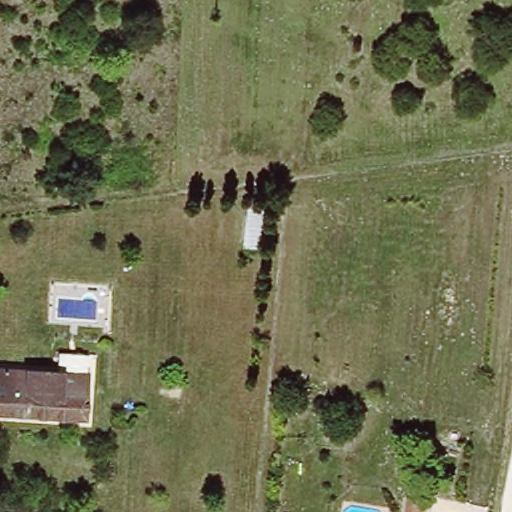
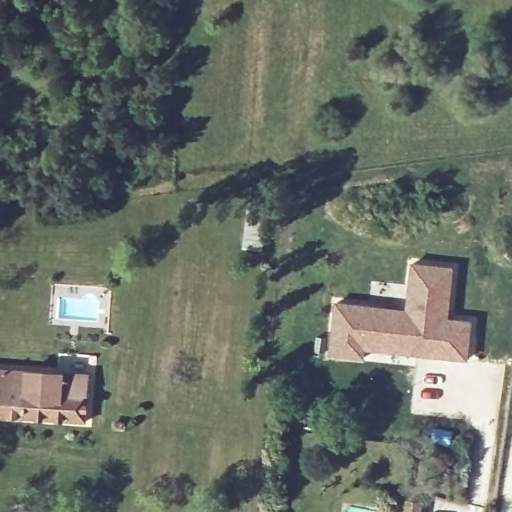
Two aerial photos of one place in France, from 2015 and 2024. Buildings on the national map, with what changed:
unchanged [(245,205),(268,206),(264,247),(241,245),(245,205)]
new [(338,304),(372,305),(371,310),(409,313),(412,266),(453,268),(449,320),(473,321),(471,359),(445,357),(446,350),(421,348),(421,353),(368,350),(368,361),(334,360),(338,304)]
unchanged [(81,423),(0,417),(0,371),(86,377),(81,423)]
unchanged [(427,496),(424,512),(408,512),(412,495),(427,496)]

